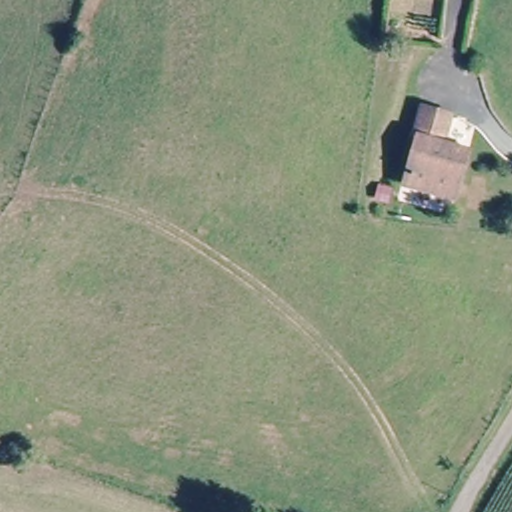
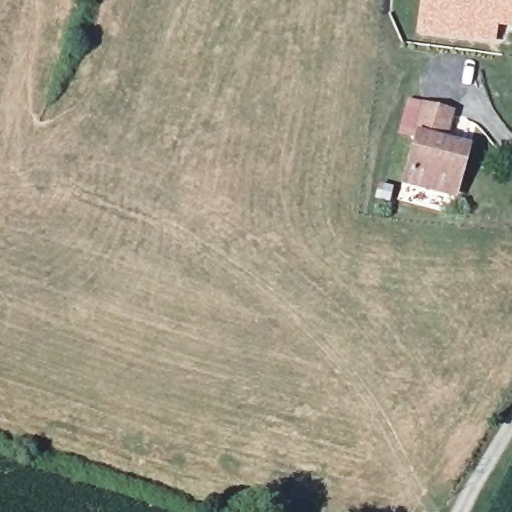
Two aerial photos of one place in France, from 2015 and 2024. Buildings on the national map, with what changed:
new [(498,28),(494,47),(417,37),(422,0),(512,0),(512,30),(498,28)]
unchanged [(468,145),(455,190),(411,177),(422,133),(417,132),(423,104),(457,114),(450,139),(468,145)]

